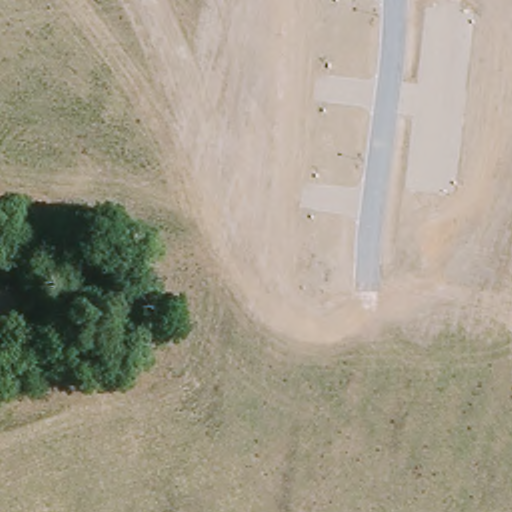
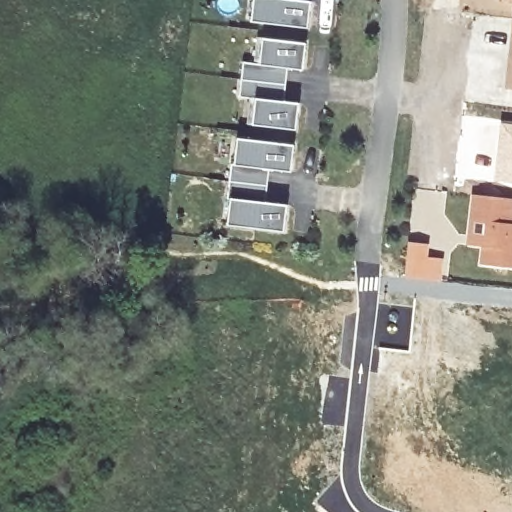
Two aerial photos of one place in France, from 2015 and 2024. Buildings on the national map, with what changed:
new [(254,19),(255,0),(299,0),(311,1),(308,26),(254,19)]
new [(512,4),(498,2),(498,0),(512,0),(512,4)]
new [(512,18),(512,90),(504,89),(512,18)]
new [(251,101),(240,100),(244,65),(255,66),(258,41),(263,41),(307,46),(303,73),(288,71),(284,104),(299,106),(296,133),(253,128),(248,127),(251,101)]
new [(512,122),(512,183),(492,180),(500,120),(512,122)]
new [(232,198),(236,164),(239,137),(295,145),(291,170),(274,168),(269,203),(287,205),(284,230),(229,223),(232,198)]
new [(480,246),(467,245),(471,194),(512,198),(512,268),(478,264),(480,246)]
new [(439,283),(424,281),(404,279),(408,244),(428,246),(426,260),(442,262),(439,283)]

